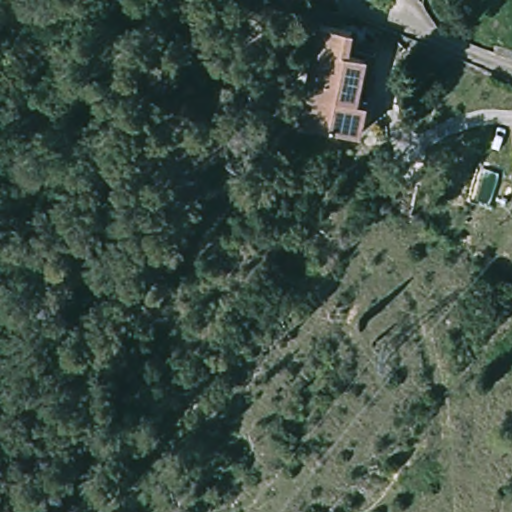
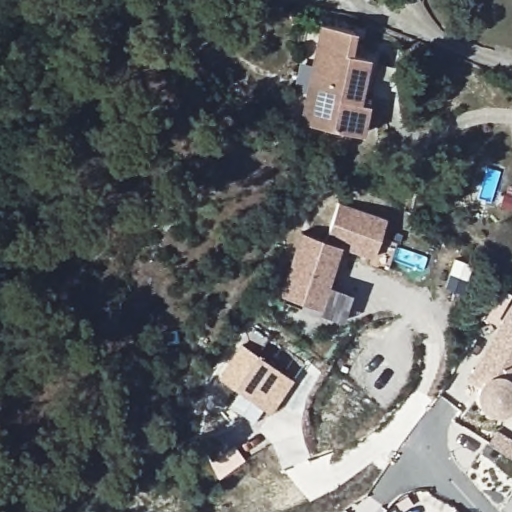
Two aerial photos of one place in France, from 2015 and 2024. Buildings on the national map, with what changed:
unchanged [(301,129),(316,28),(349,32),(346,55),(362,57),(373,60),(363,105),(357,137),(301,129)]
new [(338,202),(387,218),(373,256),(341,245),(325,240),(338,202)]
new [(342,321),(281,301),(283,295),(302,233),(341,245),(329,287),(351,293),(342,321)]
new [(512,308),(512,380),(508,377),(504,375),(500,375),(495,375),(491,375),(488,376),(484,380),(482,382),(473,376),(512,308)]
new [(218,377),(241,343),(252,327),(268,338),(258,355),(293,380),(270,414),(233,388),(222,405),(207,393),(218,377)]
new [(505,414),(502,415),(499,415),(496,415),(493,415),(489,413),(486,411),(483,410),(481,407),(479,405),(478,401),(478,397),(477,394),(478,390),(479,387),(481,383),(482,382),(484,380),(488,376),(491,375),(495,375),(500,375),(504,375),(508,377),(512,379),(512,409),(511,410),(508,412),(505,414)]
new [(492,431),(512,443),(512,455),(487,441),(492,431)]

